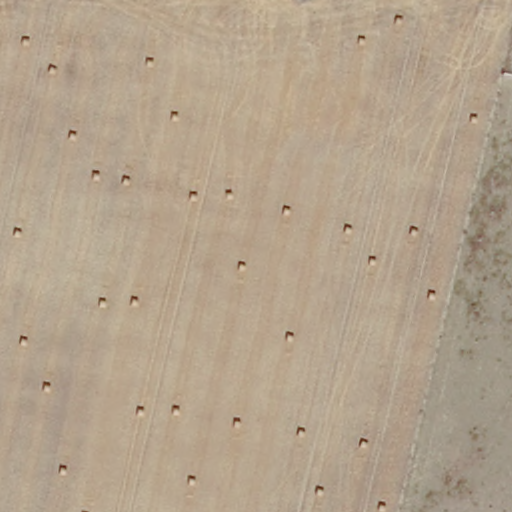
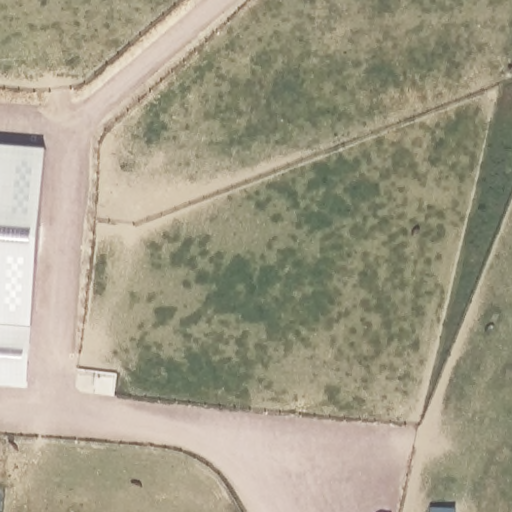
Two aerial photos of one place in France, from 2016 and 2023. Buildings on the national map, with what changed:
new [(36,393),(0,391),(0,138),(50,140),(36,393)]

